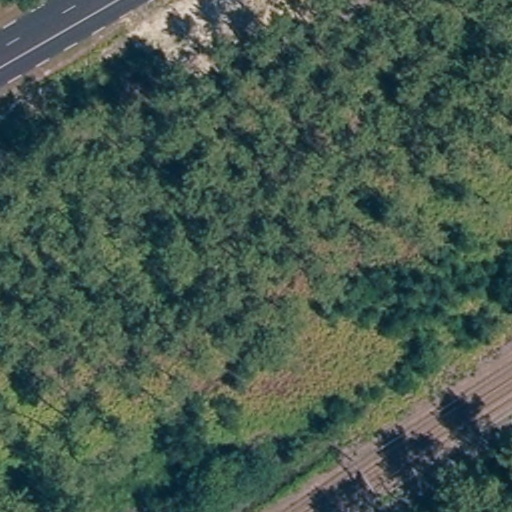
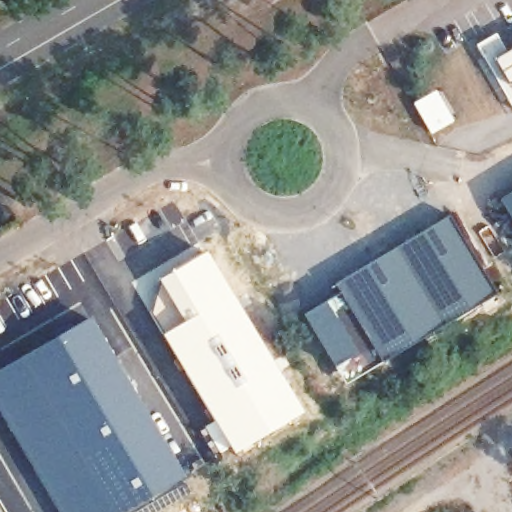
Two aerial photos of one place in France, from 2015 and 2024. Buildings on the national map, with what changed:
new [(478,47),(497,35),(508,50),(512,48),(512,104),(478,47)]
new [(499,199),(512,191),(512,221),(499,199)]
new [(381,360),(346,383),(334,364),(303,312),(341,292),(335,282),(450,213),(497,293),(381,360)]
new [(164,326),(167,323),(179,320),(156,278),(170,270),(205,250),(302,412),(231,453),(172,355),(156,323),(160,320),(164,326)]
new [(126,379),(173,455),(184,478),(126,512),(56,512),(0,413),(0,367),(90,315),(126,379)]

